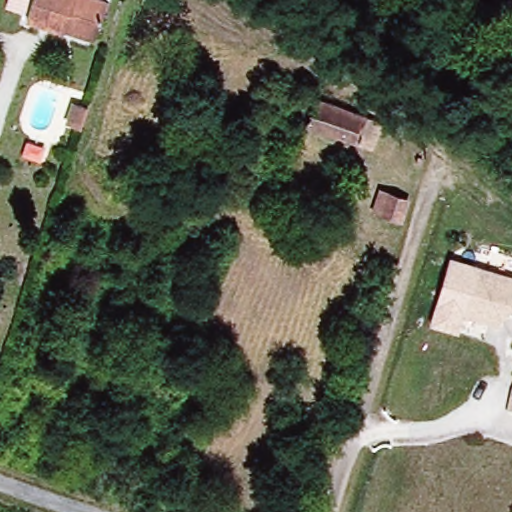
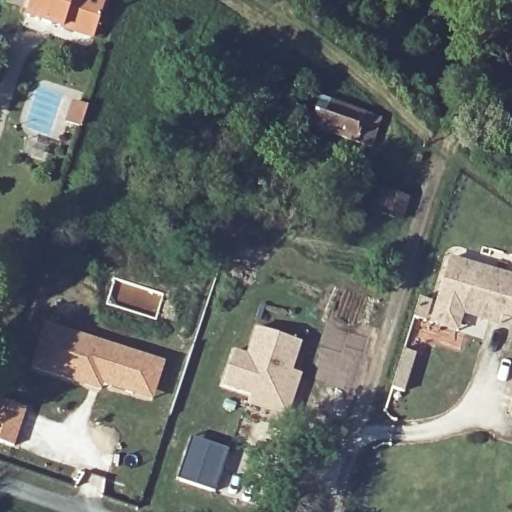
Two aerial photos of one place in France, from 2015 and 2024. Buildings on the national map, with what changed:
unchanged [(103,4),(93,41),(24,19),(30,0),(91,0),(103,4)]
unchanged [(76,110),(64,103),(71,86),(83,91),(76,110)]
unchanged [(354,145),(302,128),(314,97),(362,113),(379,120),(370,151),(354,145)]
unchanged [(383,196),(398,200),(393,220),(377,216),(383,196)]
unchanged [(512,319),(505,317),(502,327),(464,317),(477,267),(512,276),(512,319)]
new [(44,322),(165,363),(152,403),(103,388),(101,392),(28,369),(44,322)]
new [(220,385),(231,352),(245,357),(255,329),(298,344),(288,372),(297,375),(283,417),(245,404),(248,395),(220,385)]
new [(402,351),(414,355),(402,392),(390,389),(402,351)]
new [(25,409),(13,447),(0,442),(0,401),(25,409)]
unchanged [(512,403),(512,417),(508,416),(512,403)]
new [(190,436),(228,449),(214,492),(176,479),(190,436)]

